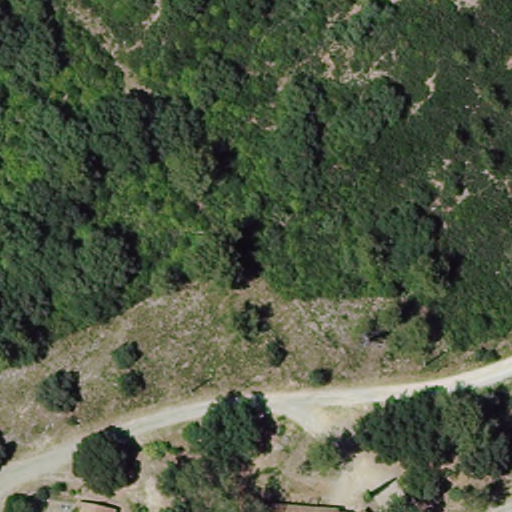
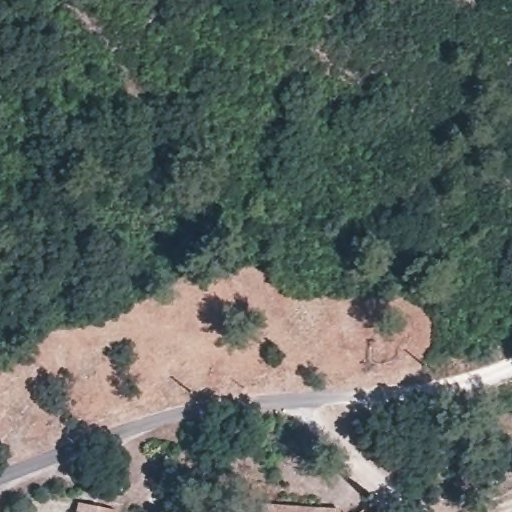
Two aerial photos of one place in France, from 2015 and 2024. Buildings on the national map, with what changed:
unchanged [(256,499),(311,503),(311,507),(342,509),(345,512),(256,512),(256,499)]
unchanged [(65,502),(101,510),(101,512),(62,512),(65,502)]
unchanged [(356,506),(361,512),(347,512),(356,506)]

